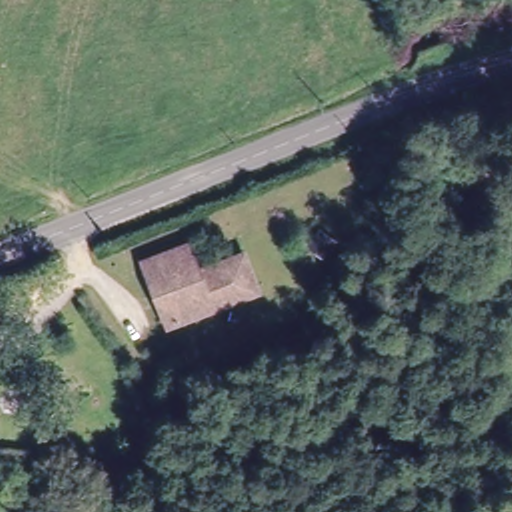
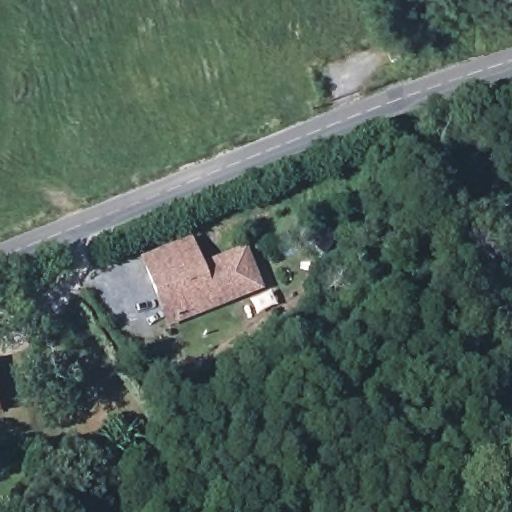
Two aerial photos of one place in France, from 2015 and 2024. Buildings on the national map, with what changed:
unchanged [(159,292),(145,260),(190,241),(201,267),(245,249),(261,285),(180,320),(172,323),(159,292)]

